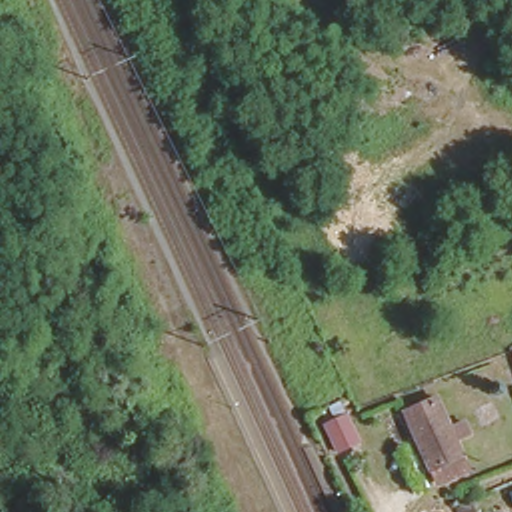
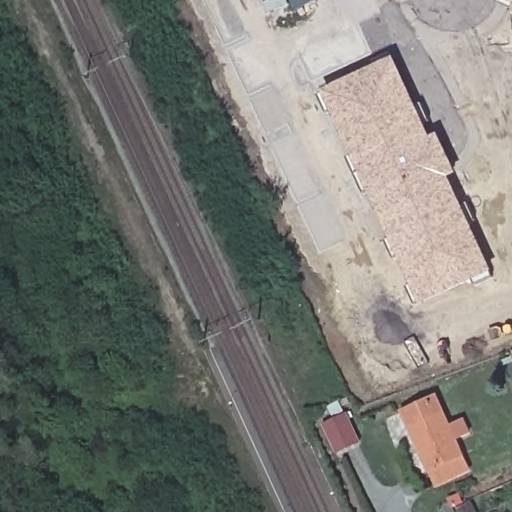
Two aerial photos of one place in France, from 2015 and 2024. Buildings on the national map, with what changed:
new [(502,0),(512,0),(512,4),(502,0)]
new [(420,305),(322,91),(395,57),(432,137),(439,134),(457,174),(451,178),(493,272),(420,305)]
unchanged [(437,479),(430,464),(426,466),(406,424),(400,408),(406,405),(433,393),(467,466),(437,479)]
new [(346,416),(358,441),(335,452),(322,424),(346,416)]

